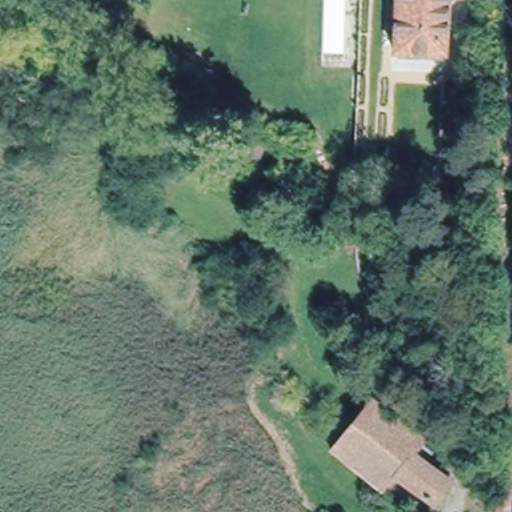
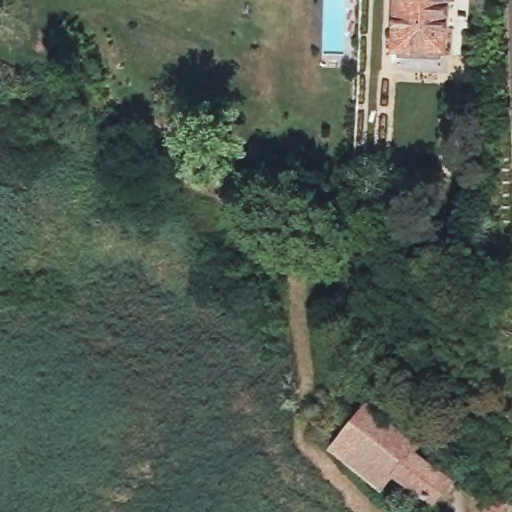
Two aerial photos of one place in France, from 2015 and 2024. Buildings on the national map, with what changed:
unchanged [(450,55),(397,53),(399,0),(452,0),(450,55)]
unchanged [(374,393),(426,435),(413,451),(451,482),(433,505),(394,475),(382,490),(331,448),(374,393)]
unchanged [(493,486),(512,490),(512,498),(508,512),(498,512),(486,508),(493,486)]

